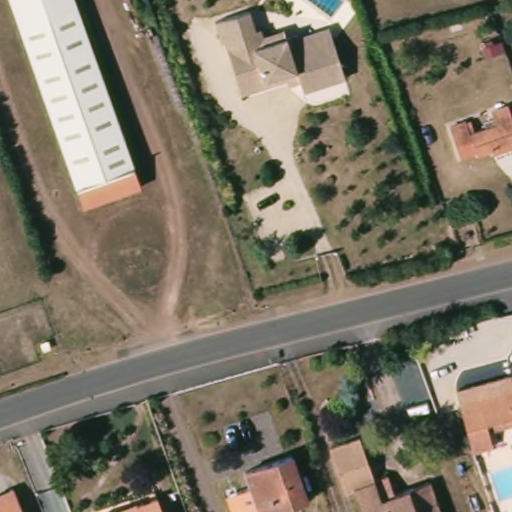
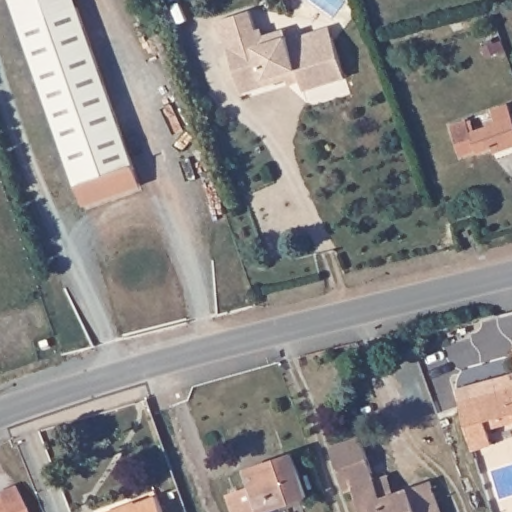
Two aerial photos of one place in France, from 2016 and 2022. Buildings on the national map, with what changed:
unchanged [(17,0),(83,0),(108,70),(48,87),(17,0)]
unchanged [(305,77),(241,93),(226,41),(221,41),(215,20),(251,9),(258,29),(262,28),(267,43),(293,36),(305,77)]
unchanged [(307,34),(336,25),(340,39),(353,79),(310,92),(293,36),(306,31),(307,34)]
unchanged [(108,70),(146,183),(86,203),(48,87),(108,70)]
unchanged [(476,125),(498,120),(495,107),(512,102),(512,104),(512,145),(498,148),(496,143),(462,152),(454,125),(475,120),(476,125)]
unchanged [(479,449),(467,403),(512,390),(512,423),(493,428),(498,444),(479,449)]
unchanged [(356,480),(360,491),(345,496),(327,448),(360,437),(376,474),(356,480)]
unchanged [(296,451),(311,494),(263,509),(249,467),(296,451)]
unchanged [(394,471),(399,488),(433,477),(445,512),(366,512),(356,480),(376,474),(377,477),(394,471)]
unchanged [(11,487),(20,512),(0,512),(0,490),(11,487)]
unchanged [(133,497),(155,488),(163,512),(95,512),(95,511),(133,497)]

